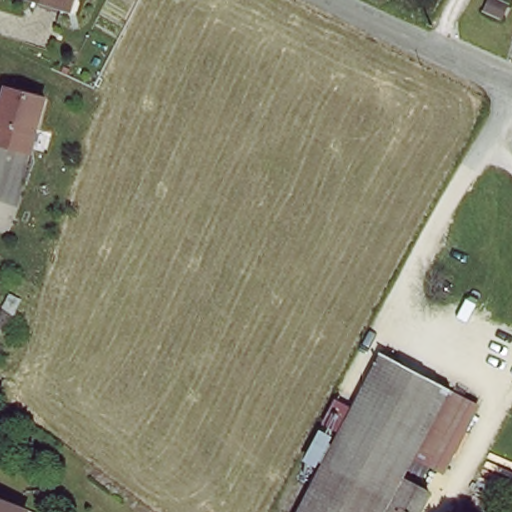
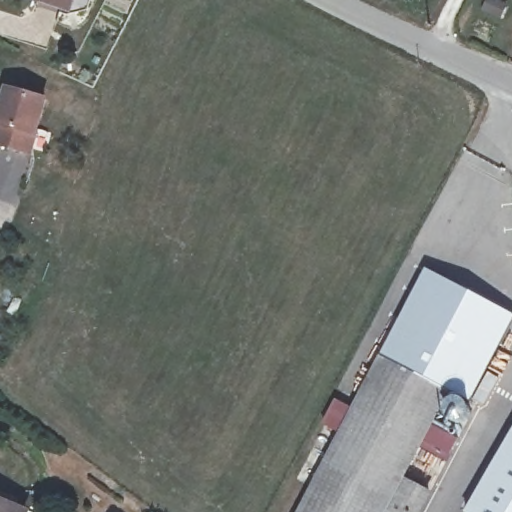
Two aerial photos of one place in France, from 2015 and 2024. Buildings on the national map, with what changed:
unchanged [(40,0),(67,0),(65,7),(40,0)]
unchanged [(0,145),(0,111),(6,88),(43,99),(28,153),(0,145)]
new [(512,325),(512,328),(472,404),(448,390),(382,354),(422,279),(512,325)]
unchanged [(382,354),(448,390),(427,429),(413,456),(400,479),(390,499),(322,464),(382,354)]
new [(512,439),(512,512),(469,512),(512,439)]
unchanged [(390,499),(400,479),(427,494),(418,512),(297,512),(322,464),(390,499)]
unchanged [(17,509),(20,511),(20,512),(0,512),(0,502),(17,509)]

